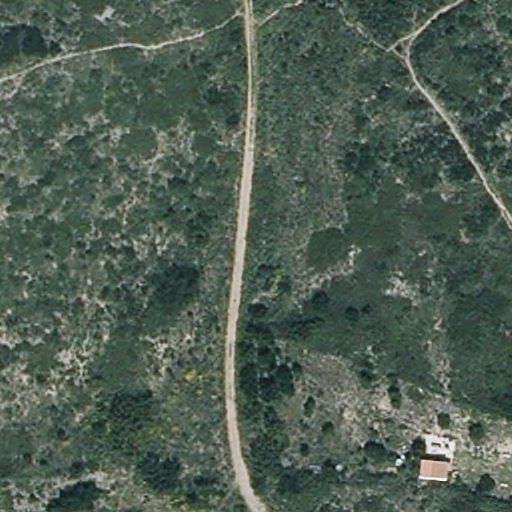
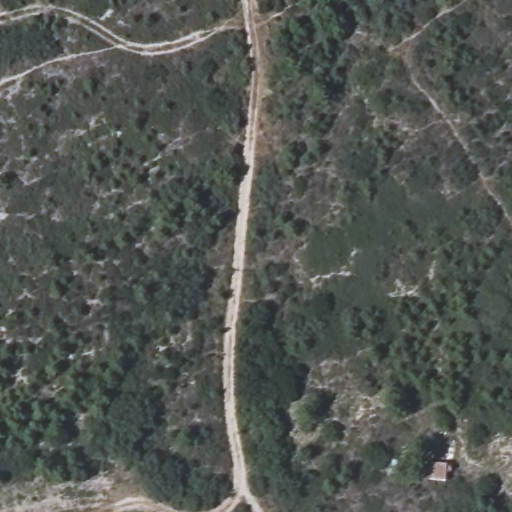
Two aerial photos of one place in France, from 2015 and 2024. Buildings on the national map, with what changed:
unchanged [(418,475),(417,460),(447,460),(446,475),(418,475)]

